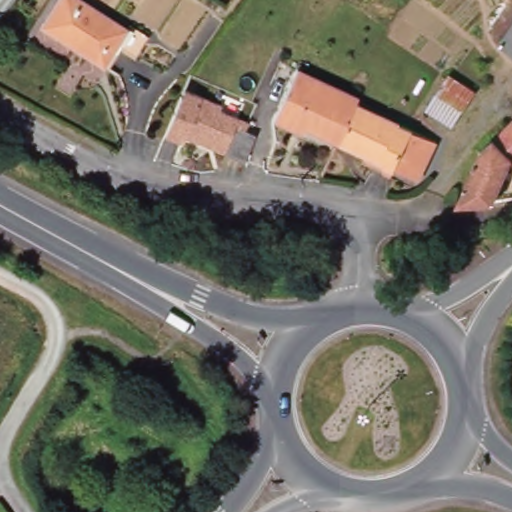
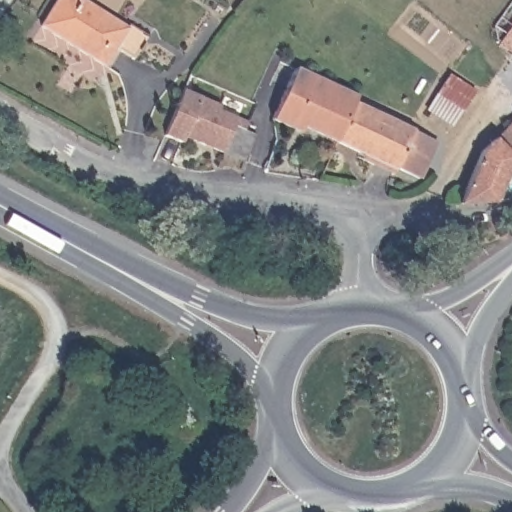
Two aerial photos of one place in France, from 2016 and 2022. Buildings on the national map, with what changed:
unchanged [(104,67),(41,28),(59,0),(79,0),(127,30),(130,26),(150,39),(136,61),(116,48),(104,67)]
unchanged [(495,37),(494,23),(512,0),(512,49),(495,37)]
unchanged [(299,126),(278,116),(304,65),(363,95),(361,101),(342,139),(311,123),(307,130),(299,126)]
unchanged [(480,92),(458,125),(434,109),(456,77),(480,92)]
unchanged [(190,139),(187,145),(171,137),(170,136),(178,120),(185,106),(192,93),(229,110),(227,114),(243,122),(252,126),(250,130),(249,132),(253,134),(260,137),(254,151),(249,163),(229,155),(217,151),(210,147),(190,139)]
unchanged [(361,101),(418,129),(401,167),(342,139),(361,101)]
unchanged [(460,202),(482,148),(512,120),(512,163),(497,200),(460,202)]
unchanged [(442,141),(423,178),(401,167),(418,129),(442,141)]

